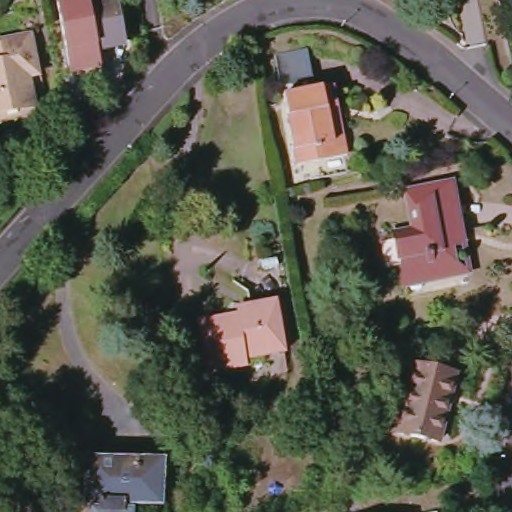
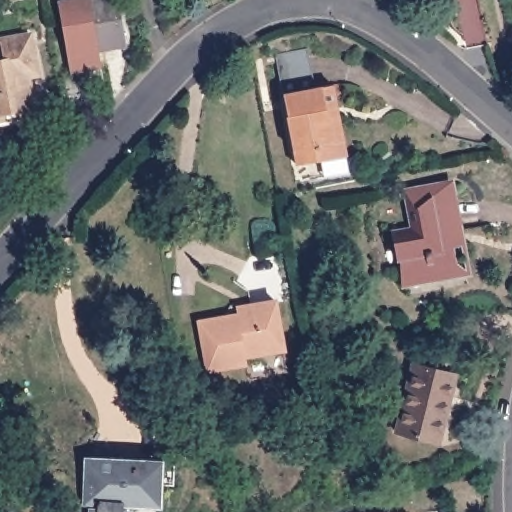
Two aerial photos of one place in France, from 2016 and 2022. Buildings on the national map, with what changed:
unchanged [(74,0),(119,0),(125,38),(97,43),(100,59),(70,64),(59,2),(74,0)]
unchanged [(33,74),(23,76),(29,109),(0,114),(0,40),(25,34),(33,74)]
unchanged [(337,84),(350,157),(297,167),(284,94),(337,84)]
unchanged [(465,231),(453,233),(460,274),(429,280),(429,277),(410,281),(402,236),(420,232),(414,191),(457,183),(465,231)]
unchanged [(285,350),(247,357),(247,364),(209,371),(200,322),(238,315),(237,307),(250,305),(275,300),(285,350)]
unchanged [(399,432),(415,364),(454,374),(447,403),(450,403),(440,443),(399,432)]
unchanged [(108,478),(114,478),(115,463),(130,463),(130,469),(165,470),(164,490),(157,490),(157,510),(127,508),(127,512),(102,512),(102,507),(92,507),(94,462),(109,463),(108,478)]

